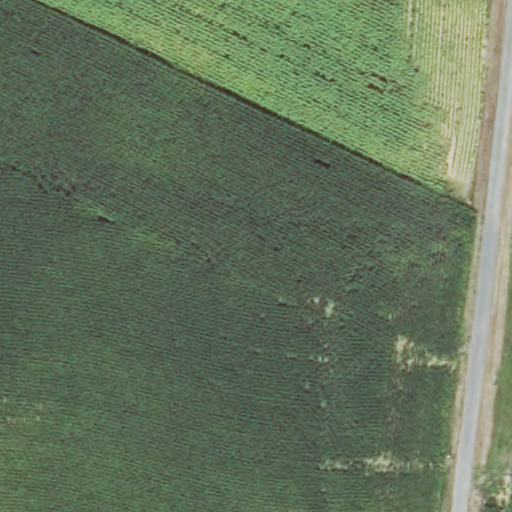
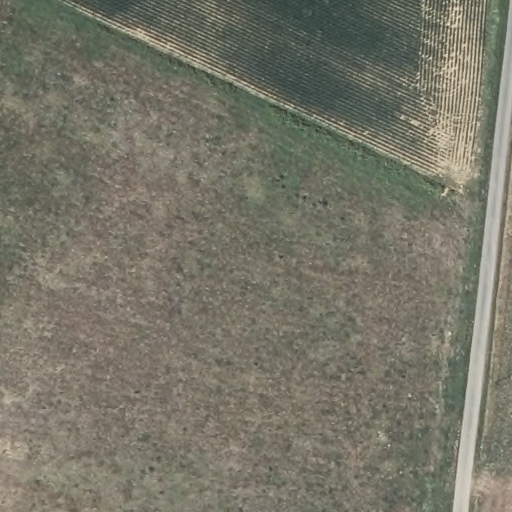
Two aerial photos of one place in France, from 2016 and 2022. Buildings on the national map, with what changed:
[]

